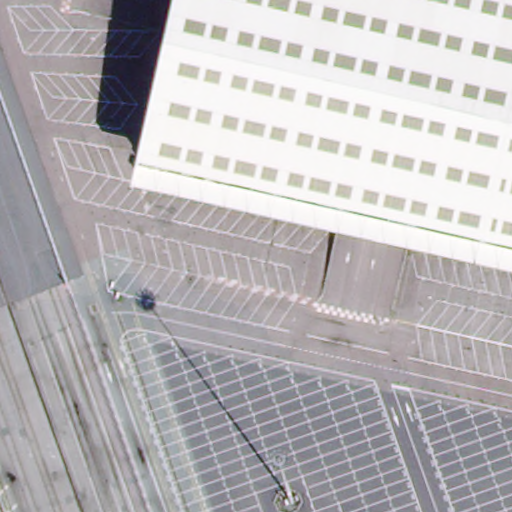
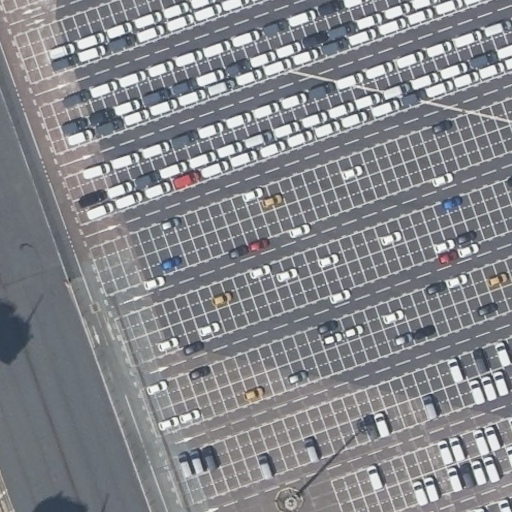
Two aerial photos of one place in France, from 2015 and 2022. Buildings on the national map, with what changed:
demolished [(512,0),(512,257),(140,174),(180,0),(512,0)]

